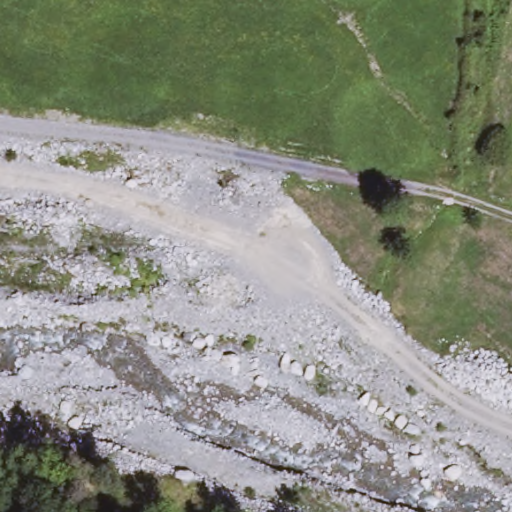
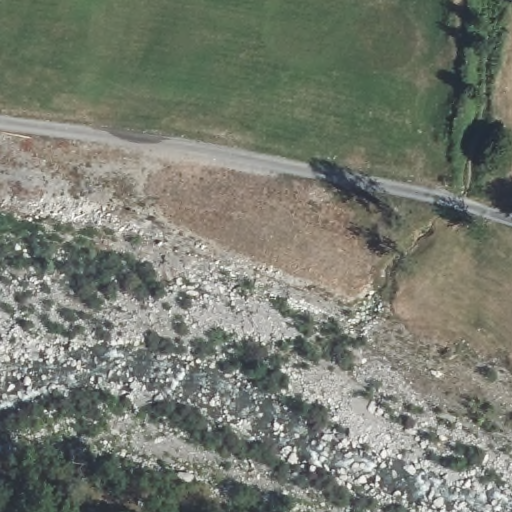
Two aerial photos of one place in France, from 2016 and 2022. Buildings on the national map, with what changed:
[]

